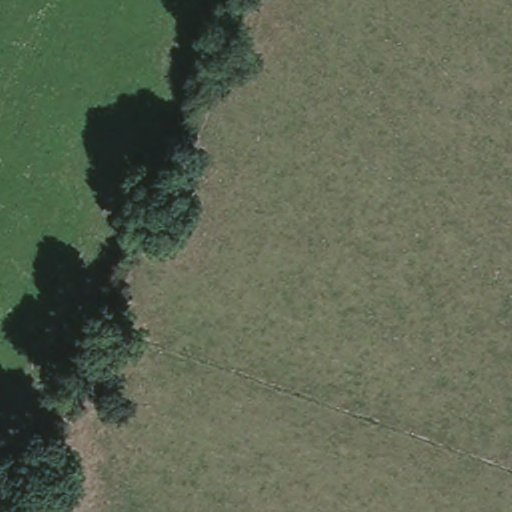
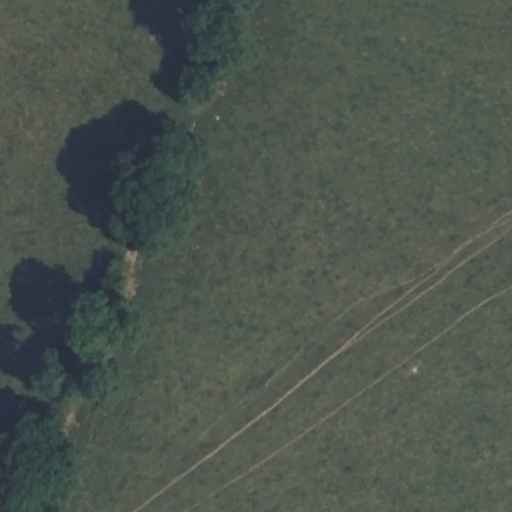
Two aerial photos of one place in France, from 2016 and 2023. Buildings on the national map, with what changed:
[]

